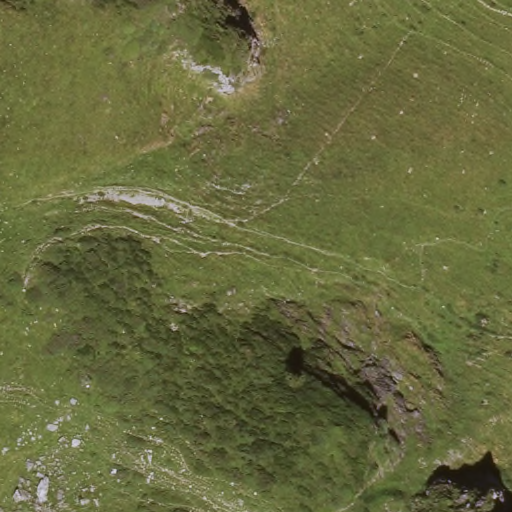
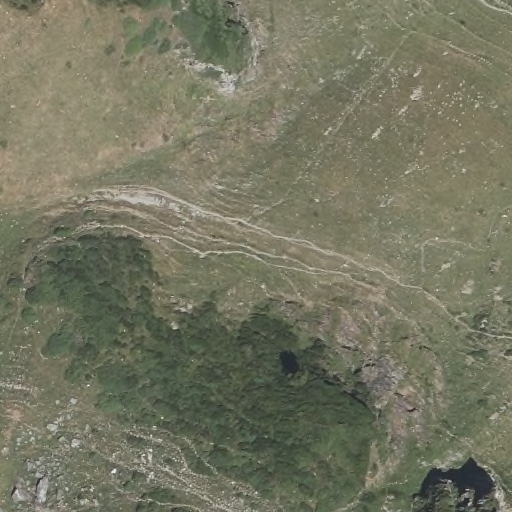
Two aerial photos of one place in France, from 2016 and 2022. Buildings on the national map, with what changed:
[]

